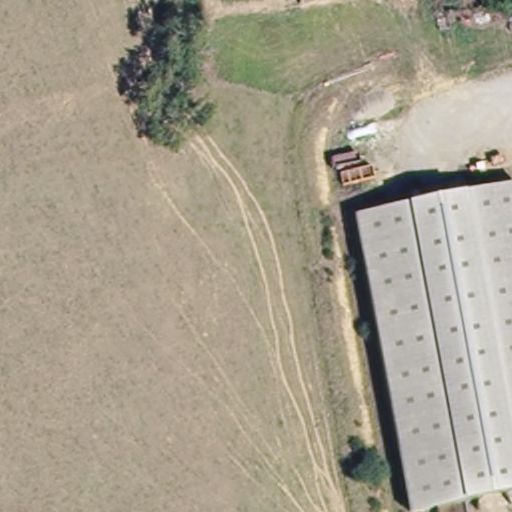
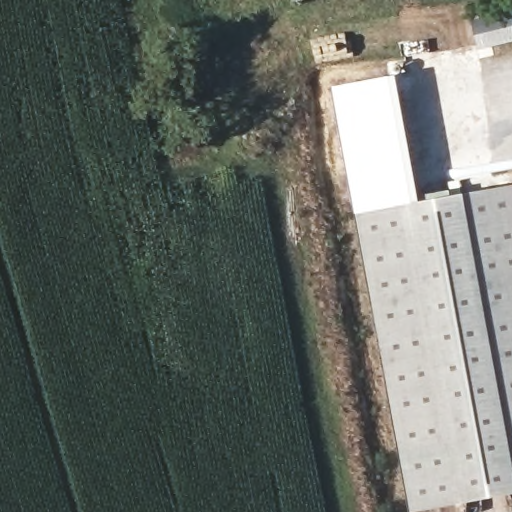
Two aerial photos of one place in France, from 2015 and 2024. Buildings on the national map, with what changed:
new [(356,219),(332,87),(397,74),(422,207),(356,219)]
unchanged [(405,512),(356,219),(512,192),(512,496),(420,512),(405,512)]

